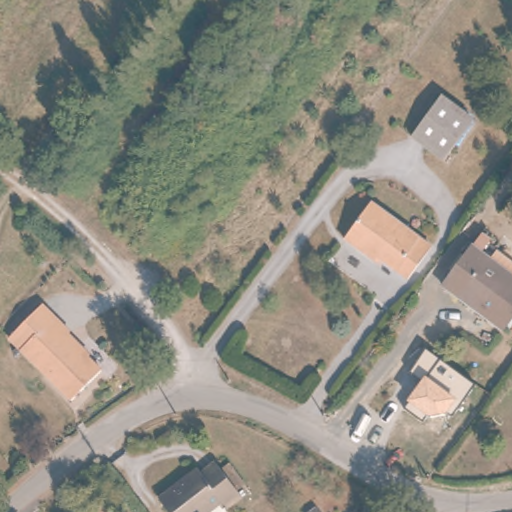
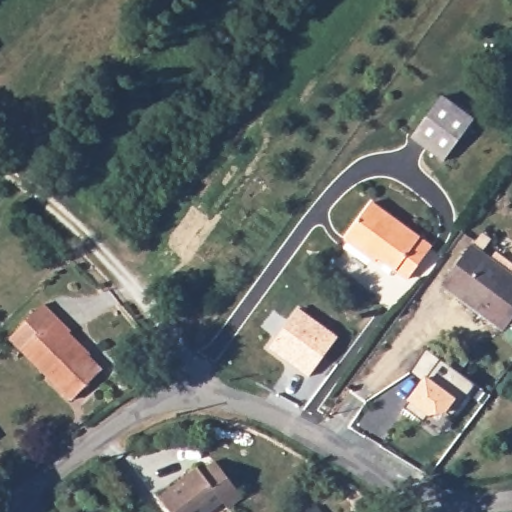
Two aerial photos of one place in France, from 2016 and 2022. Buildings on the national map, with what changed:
unchanged [(413,140),(445,99),(454,106),(476,124),(445,165),(423,148),(413,140)]
unchanged [(351,236),(378,200),(382,203),(438,245),(415,276),(386,254),(382,259),(356,239),(351,236)]
unchanged [(512,278),(482,317),(443,287),(473,247),(512,277),(512,278)]
unchanged [(512,318),(501,332),(482,317),(512,278),(512,318)]
new [(297,306),(337,336),(307,376),(267,348),(297,306)]
unchanged [(82,342),(79,345),(112,382),(82,408),(21,343),(55,313),(82,342)]
unchanged [(439,432),(405,407),(410,401),(406,399),(420,378),(410,372),(425,350),(475,384),(439,432)]
unchanged [(219,459),(245,495),(232,505),(229,501),(214,512),(175,512),(162,496),(201,466),(204,470),(219,459)]

